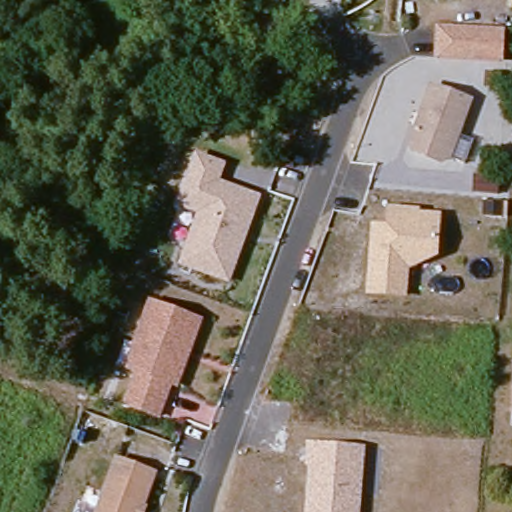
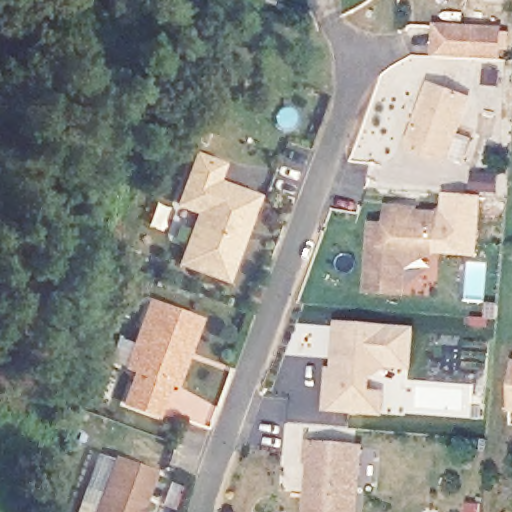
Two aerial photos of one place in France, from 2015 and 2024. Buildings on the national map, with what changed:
unchanged [(434,55),(436,25),(499,30),(497,60),(434,55)]
unchanged [(408,142),(429,84),(467,97),(446,156),(438,159),(411,150),(408,142)]
unchanged [(177,262),(196,212),(175,204),(194,153),(228,165),(223,179),(262,195),(230,282),(177,262)]
new [(444,194),(484,197),(479,258),(440,256),(443,215),(444,194)]
unchanged [(370,222),(384,224),(386,202),(420,205),(419,211),(443,215),(440,256),(410,269),(408,298),(365,295),(370,222)]
unchanged [(168,386),(156,418),(123,407),(135,375),(126,371),(135,347),(133,347),(148,304),(190,320),(198,322),(184,362),(174,388),(168,386)]
new [(488,305),(498,306),(497,318),(487,318),(488,305)]
new [(382,413),(368,412),(326,409),(329,380),(330,371),(336,371),(340,325),(413,330),(410,367),(385,366),(370,378),(369,392),(384,393),(382,413)]
unchanged [(360,512),(304,512),(309,467),(303,467),(304,443),(366,447),(360,512)]
unchanged [(120,461),(156,475),(142,512),(100,512),(120,461)]

